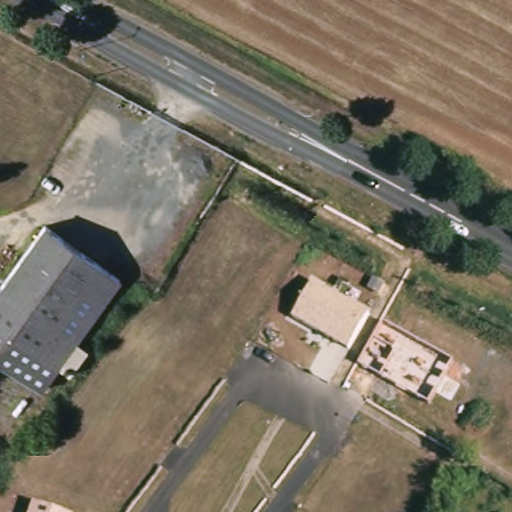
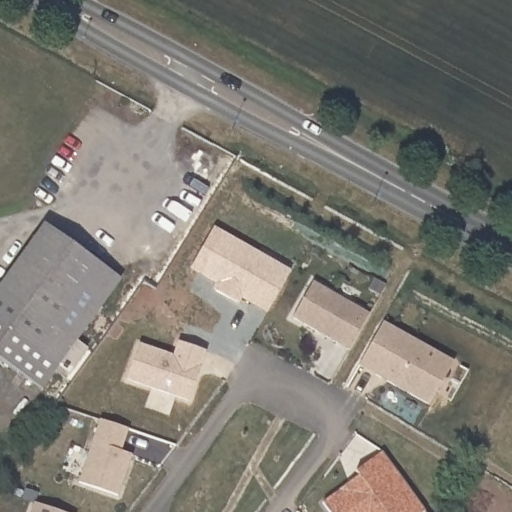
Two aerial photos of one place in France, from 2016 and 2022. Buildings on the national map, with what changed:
unchanged [(121,280),(42,388),(0,358),(0,291),(46,227),(121,280)]
unchanged [(293,317),(313,283),(368,312),(348,349),(293,317)]
unchanged [(384,323),(453,363),(429,407),(358,367),(384,323)]
new [(126,380),(138,343),(173,355),(178,341),(207,351),(190,402),(126,380)]
new [(103,421),(131,431),(124,453),(134,457),(120,498),(81,485),(103,421)]
new [(322,501),(359,477),(355,471),(384,452),(427,511),(424,512),(330,512),(322,501)]
unchanged [(34,501),(65,512),(30,512),(34,501)]

